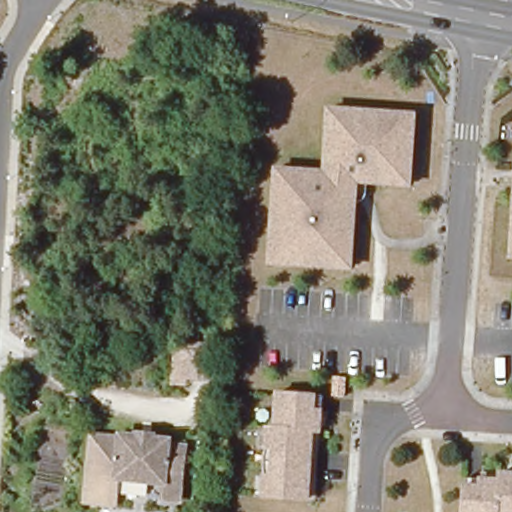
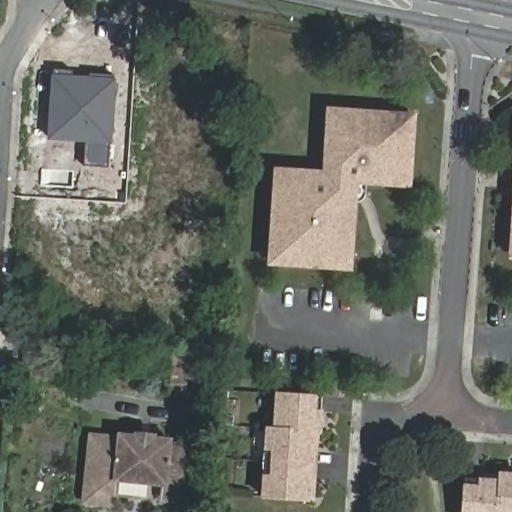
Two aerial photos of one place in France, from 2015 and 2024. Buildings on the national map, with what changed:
new [(52,75),(53,75),(54,70),(72,71),(72,76),(90,77),(90,73),(114,75),(114,79),(117,80),(113,145),(110,144),(108,167),(84,166),(85,142),(47,140),(52,75)]
unchanged [(276,250),(268,250),(273,182),(281,183),(282,169),(331,173),(332,157),(325,157),(327,123),(335,124),(336,110),(400,115),(400,121),(413,123),(410,180),(396,178),(395,185),(366,184),(366,176),(350,175),(347,203),(354,204),(351,255),(343,255),(342,268),(275,264),(276,250)]
unchanged [(511,244),(512,228),(512,244),(511,244)]
unchanged [(171,351),(187,352),(188,343),(219,345),(217,383),(190,382),(189,389),(169,387),(171,351)]
unchanged [(262,461),(263,445),(265,427),(272,428),(275,393),(320,396),(317,432),(310,432),(308,453),(305,500),(260,496),(262,461)]
unchanged [(117,507),(82,504),(90,431),(121,435),(120,443),(117,488),(117,507)]
unchanged [(117,488),(120,443),(136,444),(136,441),(151,442),(151,445),(167,446),(167,452),(183,453),(180,492),(117,488)]
unchanged [(465,492),(466,479),(501,481),(501,473),(512,474),(512,512),(464,512),(465,492)]

